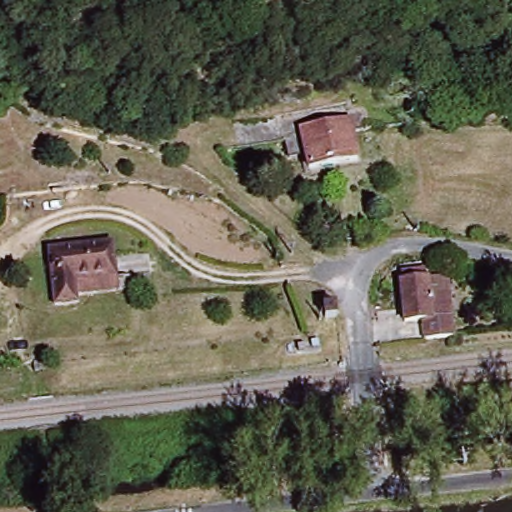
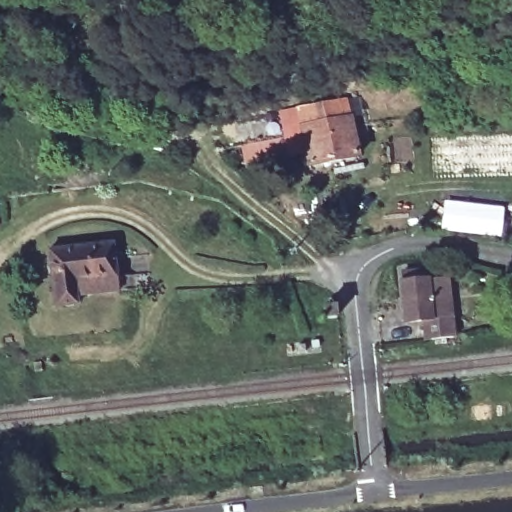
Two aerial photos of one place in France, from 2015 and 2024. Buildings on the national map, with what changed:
unchanged [(298,127),(352,117),(356,132),(360,160),(306,170),(304,154),(298,127)]
new [(505,207),(502,239),(442,232),(446,200),(505,207)]
unchanged [(110,245),(116,291),(75,297),(76,305),(56,308),(49,253),(110,245)]
unchanged [(421,323),(405,324),(400,290),(405,289),(403,278),(421,276),(422,286),(447,284),(453,336),(423,340),(421,323)]

